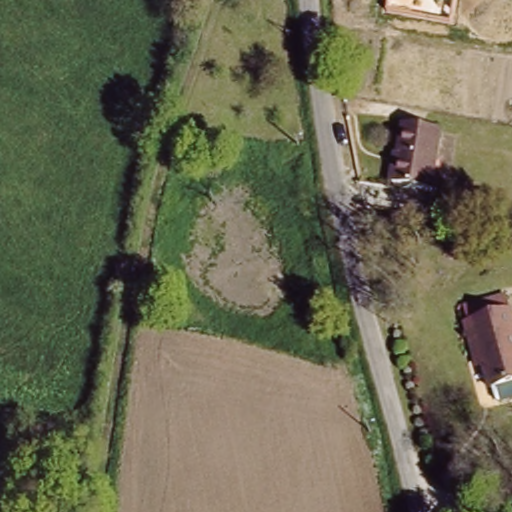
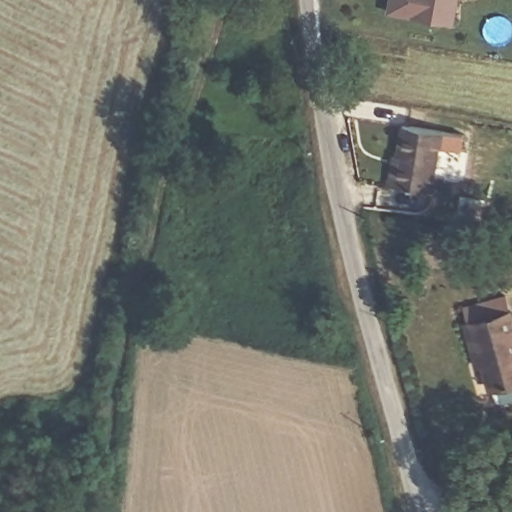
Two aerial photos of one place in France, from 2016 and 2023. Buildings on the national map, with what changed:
new [(458,0),(453,24),(388,11),(391,0),(458,0)]
unchanged [(396,151),(403,152),(408,123),(445,129),(435,188),(398,182),(392,181),(396,151)]
unchanged [(467,322),(475,319),(470,303),(487,299),(512,293),(512,383),(492,387),(485,363),(480,365),(477,357),(467,322)]

